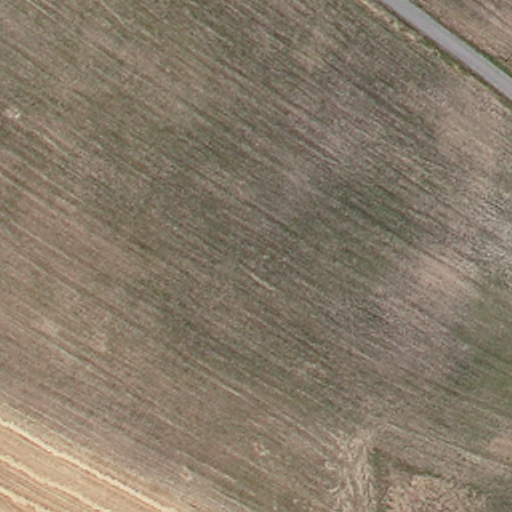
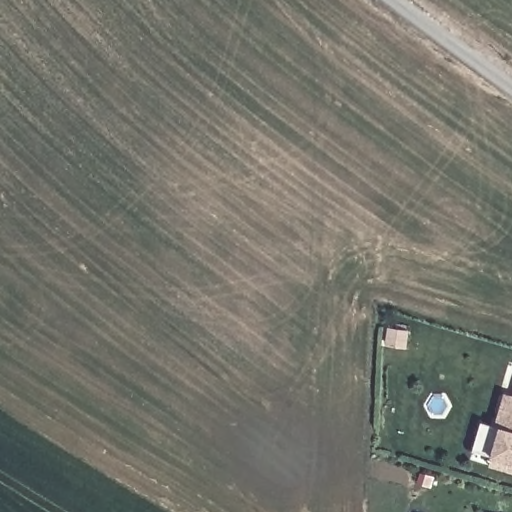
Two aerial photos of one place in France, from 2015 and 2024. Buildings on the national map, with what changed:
new [(492,457),(472,451),(481,423),(495,426),(505,393),(512,395),(512,475),(488,469),(492,457)]

